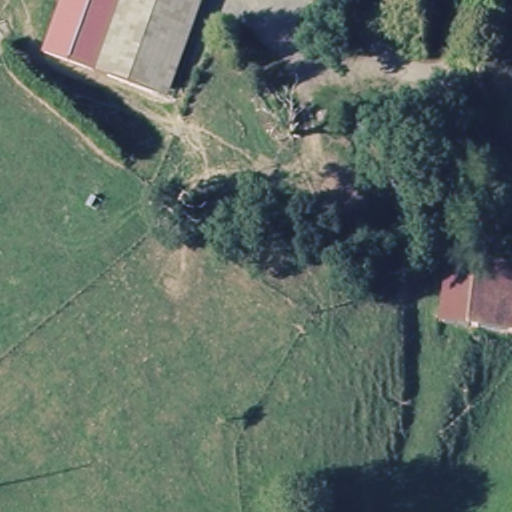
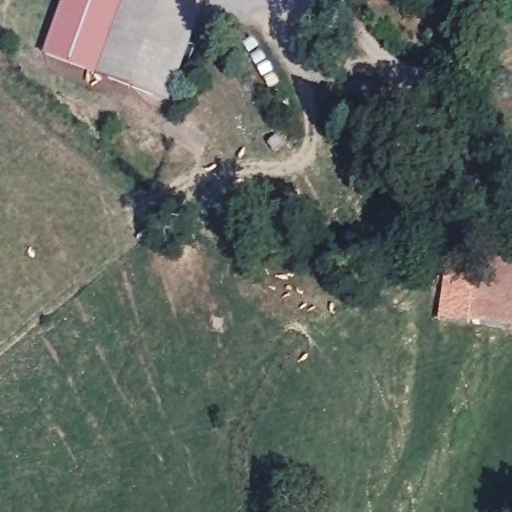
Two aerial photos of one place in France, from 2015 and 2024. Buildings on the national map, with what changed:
unchanged [(114,79),(49,56),(68,0),(139,0),(114,79)]
unchanged [(139,0),(190,0),(157,94),(124,82),(114,79),(139,0)]
unchanged [(173,100),(157,94),(190,0),(207,0),(173,100)]
unchanged [(512,306),(510,327),(457,322),(465,262),(512,266),(512,306)]

